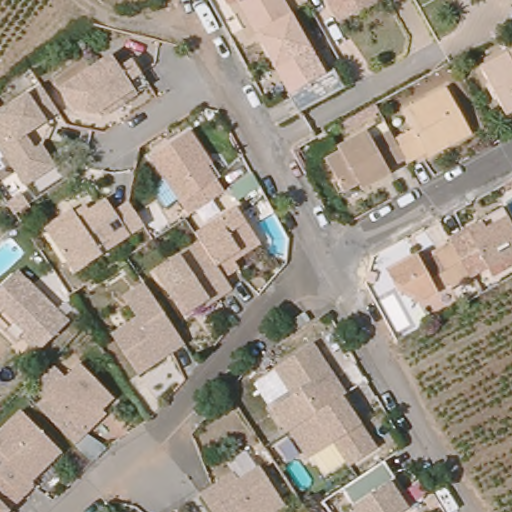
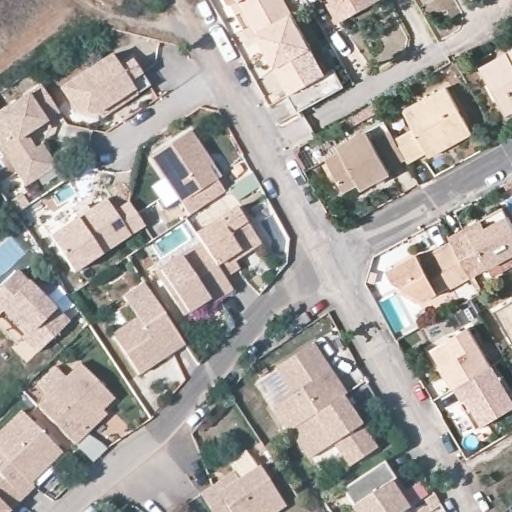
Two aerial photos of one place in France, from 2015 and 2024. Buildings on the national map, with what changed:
unchanged [(286,72),(271,44),(265,47),(260,36),(247,13),(250,12),(246,5),(243,7),(240,0),(285,0),(315,55),(286,72)]
unchanged [(335,19),(325,0),(368,0),(335,19)]
unchanged [(328,78),(288,99),(253,40),(260,36),(265,47),(271,44),(286,72),(315,55),(328,78)]
unchanged [(95,104),(92,106),(72,101),(57,79),(97,53),(112,51),(117,59),(130,51),(147,77),(122,94),(99,109),(95,104)]
unchanged [(477,71),(512,52),(512,113),(504,117),(477,71)]
unchanged [(51,159),(23,178),(16,168),(0,143),(0,102),(38,77),(56,104),(28,123),(22,126),(31,140),(37,137),(51,159)]
unchanged [(428,161),(425,155),(408,164),(406,159),(396,140),(414,130),(405,113),(448,90),(470,131),(473,137),(428,161)]
unchanged [(185,206),(146,147),(186,121),(195,136),(217,168),(213,171),(220,183),(185,206)]
unchanged [(389,168),(391,173),(362,189),(357,183),(344,190),(327,160),(342,151),(340,147),(369,131),(375,142),(392,132),(396,140),(406,159),(389,168)]
unchanged [(120,207),(134,198),(135,199),(150,221),(78,268),(55,232),(49,223),(76,205),(79,209),(90,201),(93,206),(111,195),(120,207)]
unchanged [(233,256),(238,262),(223,272),(201,238),(195,229),(236,202),(257,233),(260,238),(233,256)]
unchanged [(468,228),(505,208),(510,217),(512,220),(512,266),(495,276),(490,268),(473,277),(454,242),(470,233),(468,228)]
unchanged [(196,302),(183,311),(155,268),(201,238),(223,272),(232,285),(219,294),(200,307),(196,302)]
unchanged [(452,288),(451,286),(420,303),(400,291),(390,271),(420,254),(425,263),(438,256),(436,252),(454,242),(473,277),(452,288)]
unchanged [(23,266),(55,300),(70,321),(33,347),(2,308),(0,310),(0,286),(23,266)]
unchanged [(139,371),(112,331),(137,314),(123,293),(144,280),(185,340),(171,350),(165,354),(139,371)]
new [(512,301),(512,338),(497,311),(512,301)]
new [(465,405),(457,391),(434,353),(471,330),(495,369),(512,398),(512,413),(481,432),(465,405)]
unchanged [(290,428),(275,405),(295,391),(277,364),(315,339),(334,367),(340,376),(348,390),(344,393),(292,427),(290,428)]
unchanged [(86,424),(75,436),(36,397),(80,355),(113,389),(101,401),(105,405),(86,424)]
unchanged [(352,463),(336,439),(311,455),(292,427),(344,393),(353,406),(356,411),(378,445),(352,463)]
unchanged [(22,402),(62,443),(30,473),(34,477),(23,488),(0,465),(0,424),(22,402)]
unchanged [(360,512),(352,501),(371,488),(360,472),(384,456),(395,473),(404,486),(399,490),(407,503),(393,512),(360,512)]
unchanged [(270,512),(234,512),(231,508),(225,512),(216,512),(201,489),(215,480),(235,467),(240,475),(260,461),(287,501),(270,512)]
unchanged [(23,488),(8,503),(0,511),(0,465),(23,488)]
unchanged [(175,512),(171,512),(174,510),(175,512)]

